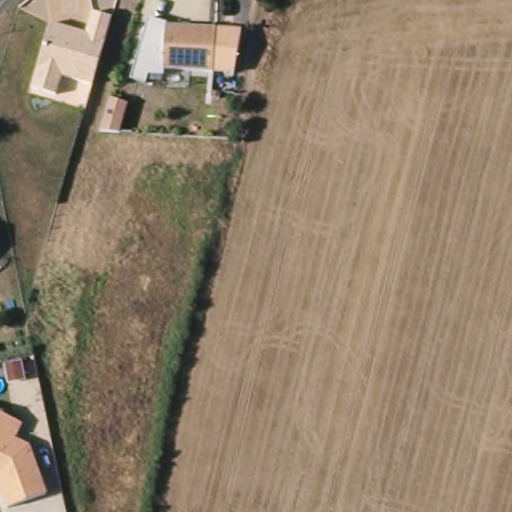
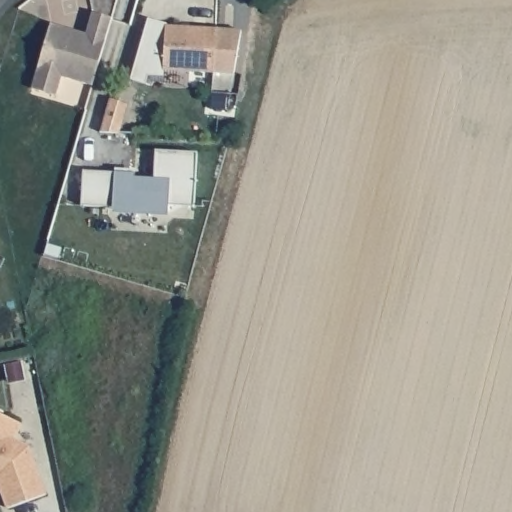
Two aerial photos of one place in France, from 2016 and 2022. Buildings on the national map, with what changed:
unchanged [(89,85),(58,76),(53,95),(29,88),(48,24),(66,29),(83,34),(90,12),(109,18),(101,44),(89,85)]
unchanged [(244,59),(241,59),(241,74),(215,74),(165,74),(165,59),(157,58),(157,29),(221,30),(245,30),(244,59)]
new [(131,134),(118,133),(99,132),(109,98),(126,103),(119,131),(131,131),(131,134)]
new [(79,170),(131,174),(131,177),(151,179),(152,150),(195,153),(191,207),(166,205),(165,210),(77,205),(79,170)]
unchanged [(25,420),(17,435),(33,443),(50,490),(12,504),(0,471),(0,408),(25,420)]

